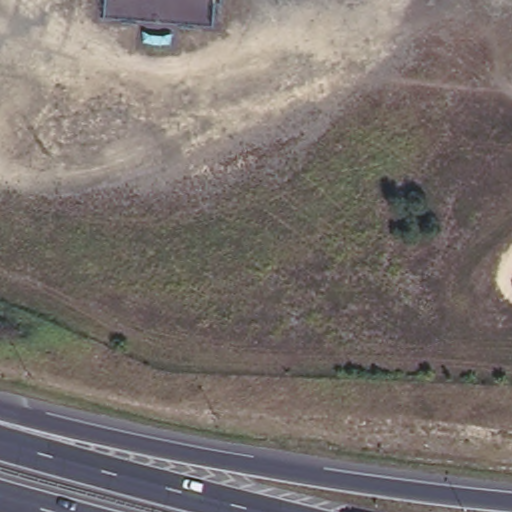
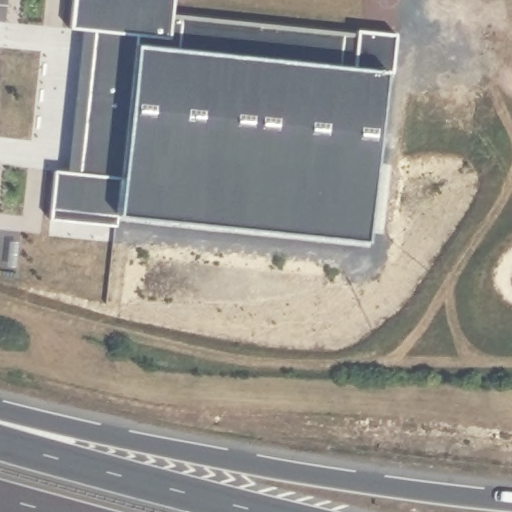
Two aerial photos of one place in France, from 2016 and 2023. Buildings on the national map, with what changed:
new [(171,12),(396,31),(394,63),(391,63),(373,245),(118,215),(117,225),(51,219),(57,167),(80,169),(96,26),(72,23),(75,0),(173,0),(171,12)]

